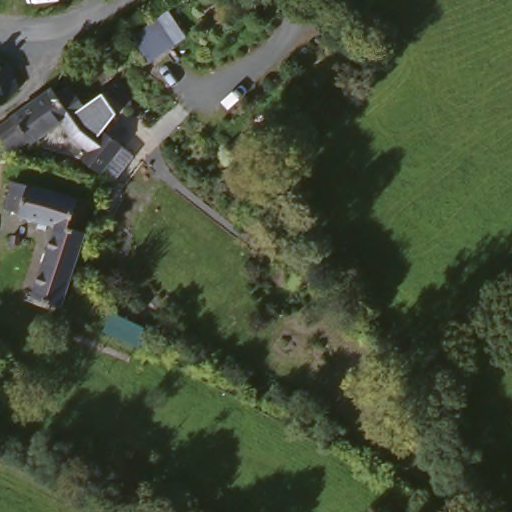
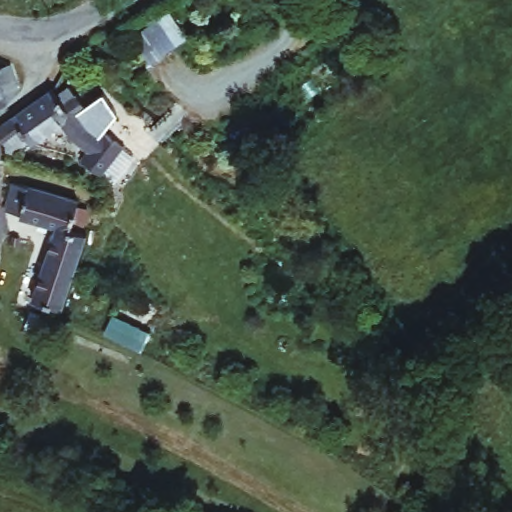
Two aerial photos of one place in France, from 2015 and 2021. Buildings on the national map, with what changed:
unchanged [(155,63),(135,36),(155,24),(174,44),(155,63)]
unchanged [(25,91),(15,102),(0,106),(0,68),(17,64),(25,91)]
unchanged [(0,123),(48,86),(60,103),(70,117),(65,121),(30,144),(26,139),(20,144),(14,136),(4,143),(0,138),(0,123)]
unchanged [(73,94),(76,99),(81,96),(102,131),(136,158),(115,185),(80,159),(83,154),(65,121),(70,117),(60,103),(73,94)]
unchanged [(84,225),(82,230),(34,217),(30,213),(18,209),(26,182),(90,199),(89,204),(84,225)]
unchanged [(89,238),(66,307),(34,294),(60,228),(89,238)]
unchanged [(110,313),(143,329),(150,315),(164,322),(147,354),(102,330),(110,313)]

